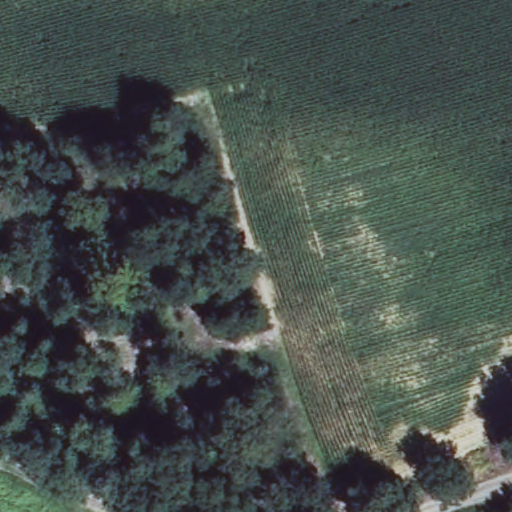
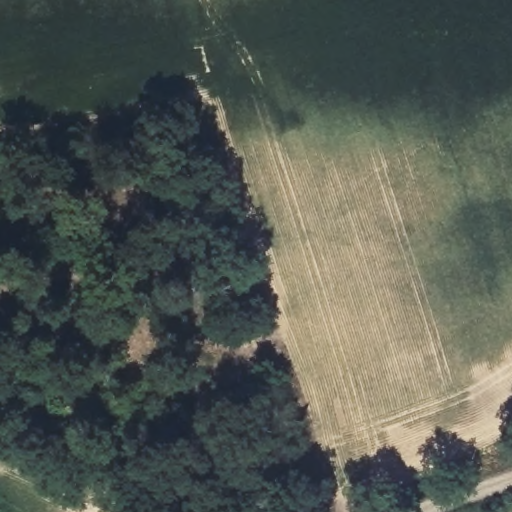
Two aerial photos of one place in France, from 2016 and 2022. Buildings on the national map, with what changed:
[]

